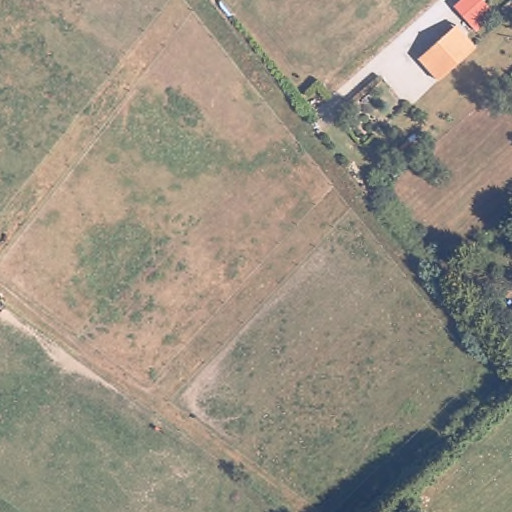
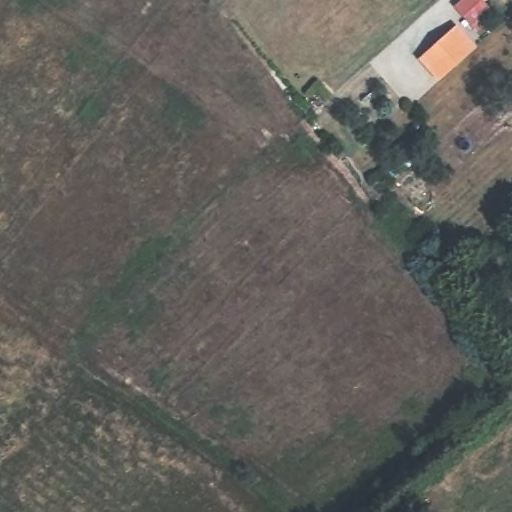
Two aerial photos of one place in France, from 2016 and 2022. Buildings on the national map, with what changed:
unchanged [(475,24),(465,33),(469,39),(460,46),(440,21),(459,5),(475,24)]
unchanged [(404,73),(430,50),(441,40),(461,62),(449,73),(424,95),(404,73)]

